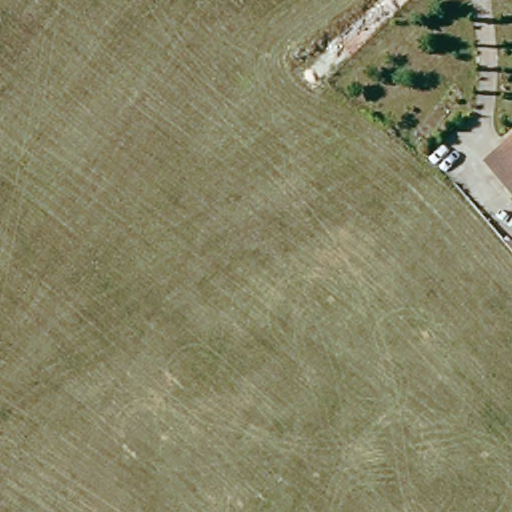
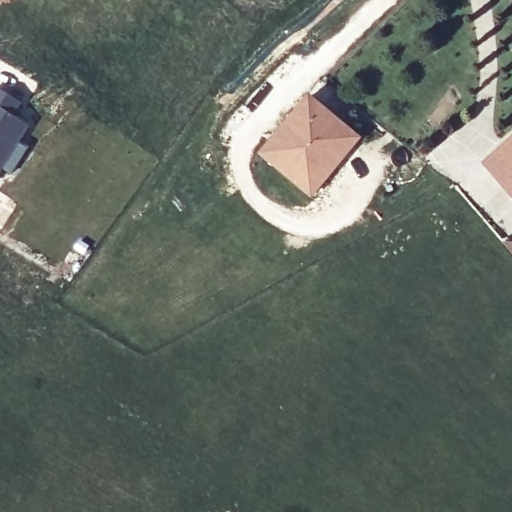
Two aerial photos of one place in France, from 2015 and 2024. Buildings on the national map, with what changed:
new [(15,116),(30,126),(20,142),(29,147),(11,175),(2,169),(0,173),(0,89),(24,104),(15,116)]
new [(274,137),(310,95),(321,104),(346,125),(359,137),(348,150),(310,193),(265,154),(278,140),(274,137)]
unchanged [(509,191),(489,167),(512,148),(512,195),(509,191)]
unchanged [(508,255),(512,256),(512,261),(508,255)]

